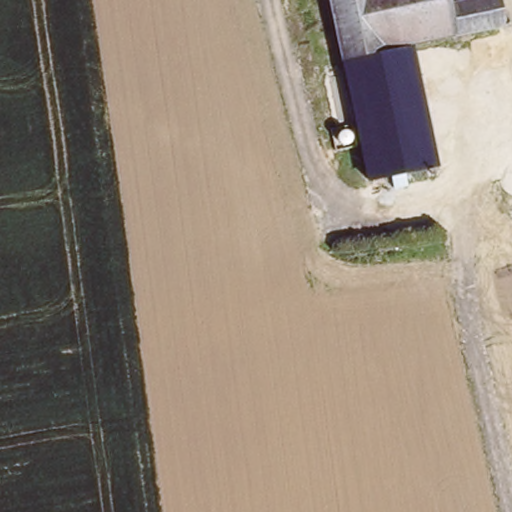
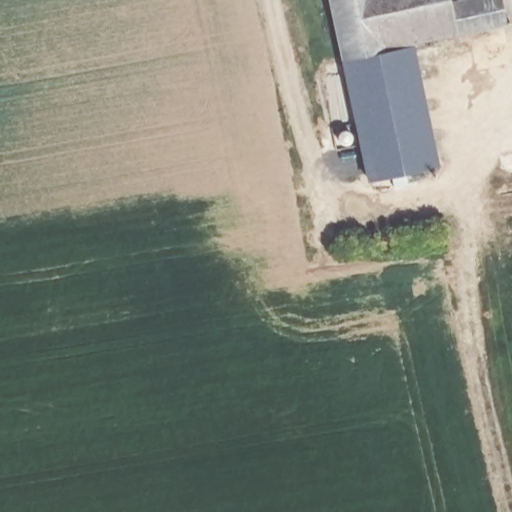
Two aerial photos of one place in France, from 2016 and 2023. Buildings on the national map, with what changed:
unchanged [(339,59),(326,0),(453,0),(460,30),(408,43),(339,59)]
unchanged [(453,0),(500,0),(505,20),(460,30),(453,0)]
unchanged [(426,119),(356,135),(339,59),(408,43),(426,119)]
unchanged [(356,135),(426,119),(436,160),(366,179),(356,135)]

